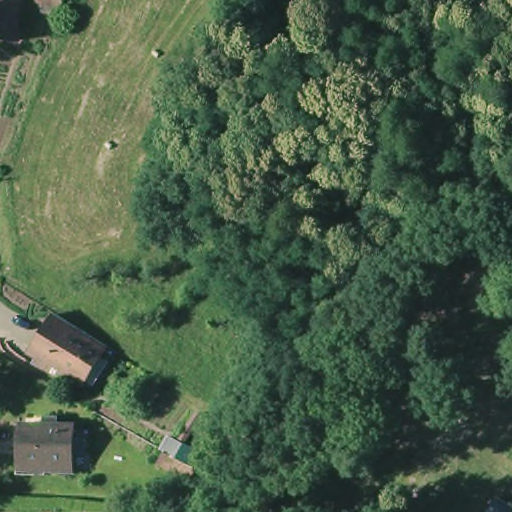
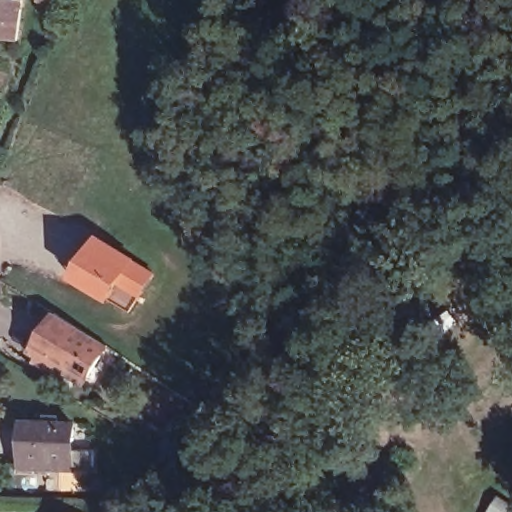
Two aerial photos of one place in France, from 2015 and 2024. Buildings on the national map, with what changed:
unchanged [(0,0),(18,0),(17,4),(20,5),(14,45),(0,43),(0,0)]
unchanged [(68,0),(65,8),(42,0),(68,0)]
new [(97,234),(155,273),(126,313),(70,277),(97,234)]
unchanged [(32,352),(57,314),(106,347),(83,384),(67,373),(62,379),(35,362),(39,356),(32,352)]
unchanged [(71,469),(22,467),(24,423),(32,424),(31,415),(56,416),(55,424),(72,424),(71,469)]
unchanged [(204,459),(196,470),(162,451),(161,451),(169,439),(204,459)]
new [(512,501),(512,512),(491,512),(502,493),(512,501)]

